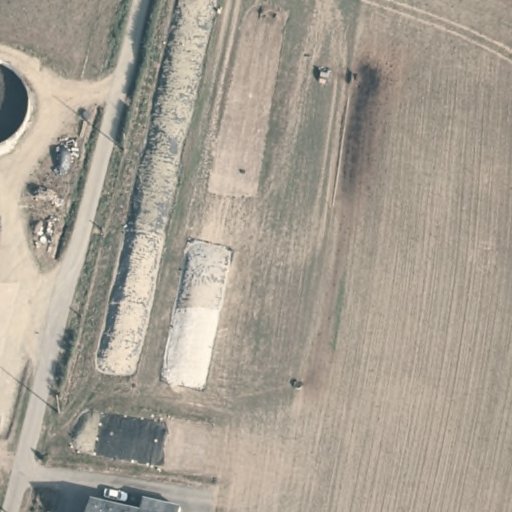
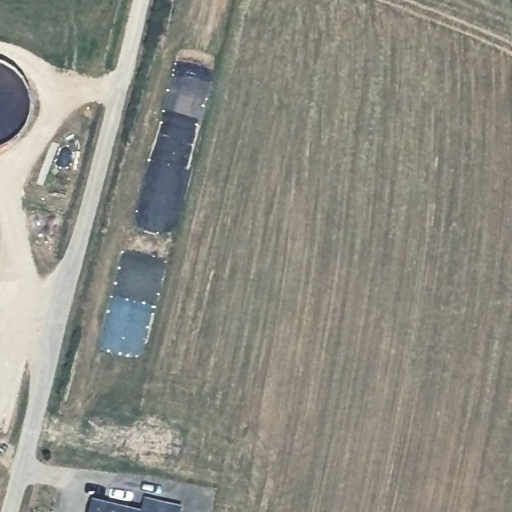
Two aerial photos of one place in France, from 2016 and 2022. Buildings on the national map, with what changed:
unchanged [(142,511),(145,498),(182,507),(181,512),(88,512),(91,498),(142,511)]

